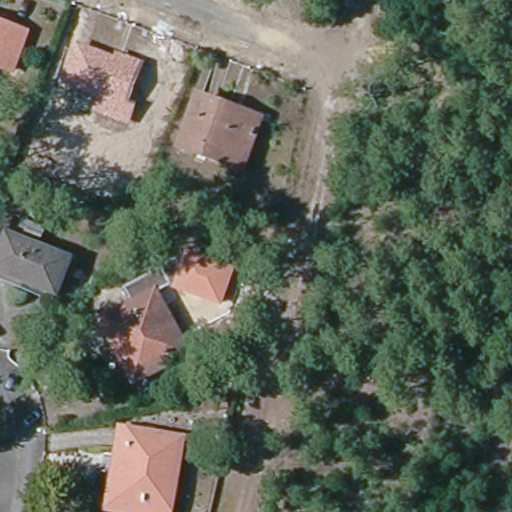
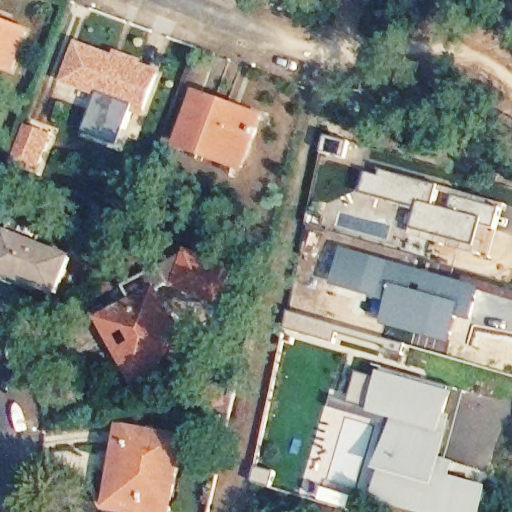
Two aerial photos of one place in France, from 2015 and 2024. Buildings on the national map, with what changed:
unchanged [(13,69),(0,64),(0,25),(26,35),(13,69)]
unchanged [(129,120),(97,107),(102,96),(69,84),(82,49),(115,61),(117,56),(142,66),(127,105),(132,107),(129,120)]
unchanged [(207,154),(187,146),(207,97),(265,120),(250,159),(247,169),(207,154)]
new [(500,230),(493,229),(487,256),(413,236),(421,210),(364,194),(370,175),(382,178),(385,171),(495,202),(493,208),(507,211),(500,230)]
unchanged [(0,271),(0,259),(9,236),(14,238),(19,225),(37,232),(33,246),(72,260),(59,294),(0,271)]
unchanged [(167,275),(179,242),(237,262),(225,305),(179,294),(167,275)]
new [(486,291),(477,323),(463,320),(456,346),(382,325),(387,303),(332,287),(344,249),(486,291)]
unchanged [(117,342),(109,326),(141,309),(132,293),(167,275),(179,294),(165,302),(194,358),(161,376),(141,387),(117,342)]
new [(407,346),(405,355),(389,351),(390,348),(338,335),(336,343),(287,330),(292,313),(407,346)]
new [(382,373),(460,396),(451,418),(456,420),(446,461),(459,465),(455,480),(493,491),(489,512),(411,512),(374,500),(384,474),(378,471),(393,427),(332,407),(336,398),(352,403),(360,375),(380,380),(382,373)]
unchanged [(172,508),(124,500),(115,498),(126,431),(134,432),(184,440),(172,508)]

